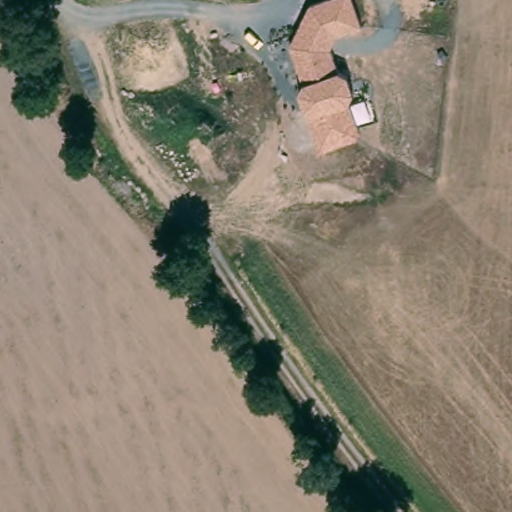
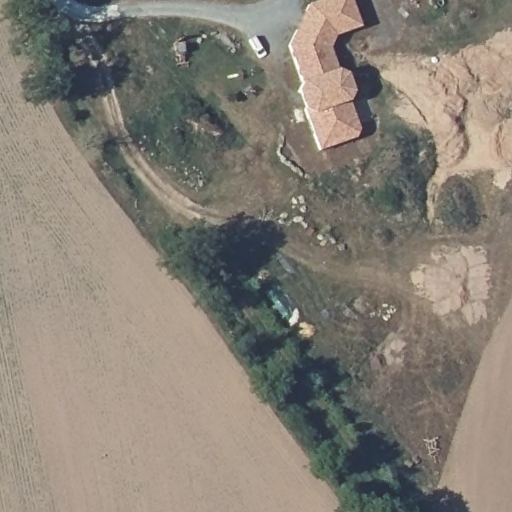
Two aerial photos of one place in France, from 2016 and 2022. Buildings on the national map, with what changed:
unchanged [(289,48),(307,4),(320,0),(352,0),(361,27),(337,35),(329,49),(336,71),(347,75),(354,91),(350,101),(362,135),(319,150),(289,48)]

